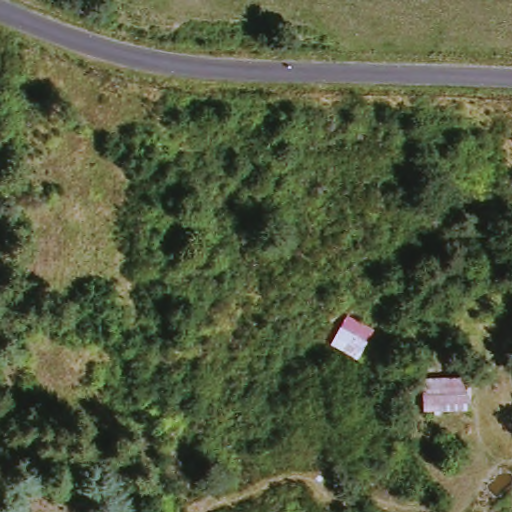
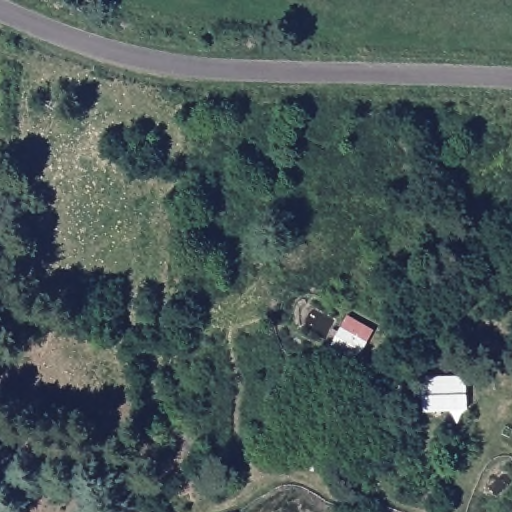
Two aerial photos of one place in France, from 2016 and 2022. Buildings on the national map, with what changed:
unchanged [(335,346),(351,317),(379,331),(362,359),(335,346)]
unchanged [(427,413),(428,380),(476,380),(475,410),(427,413)]

